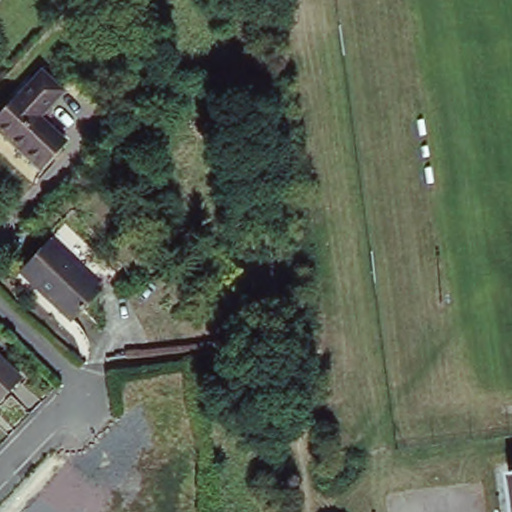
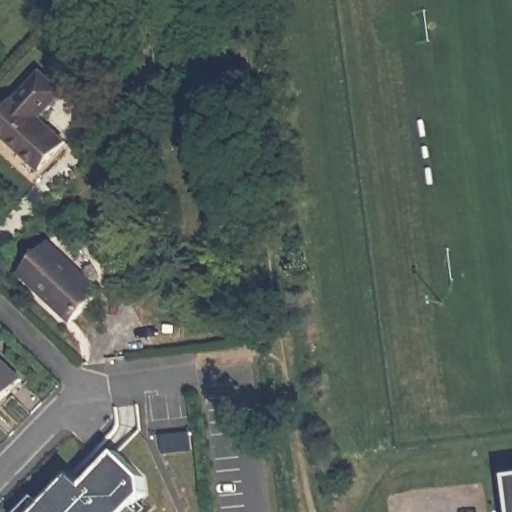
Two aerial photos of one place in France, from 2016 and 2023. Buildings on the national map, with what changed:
unchanged [(0,133),(0,116),(40,72),(63,91),(38,117),(64,140),(38,168),(0,133)]
unchanged [(70,320),(20,273),(48,243),(98,290),(70,320)]
unchanged [(0,359),(20,377),(0,398),(0,359)]
new [(69,471),(85,485),(116,450),(143,475),(143,493),(124,512),(31,512),(69,471)]
unchanged [(504,477),(512,476),(512,512),(508,512),(504,477)]
demolished [(45,493),(53,501),(76,477),(91,492),(94,489),(118,512),(26,512),(45,493)]

